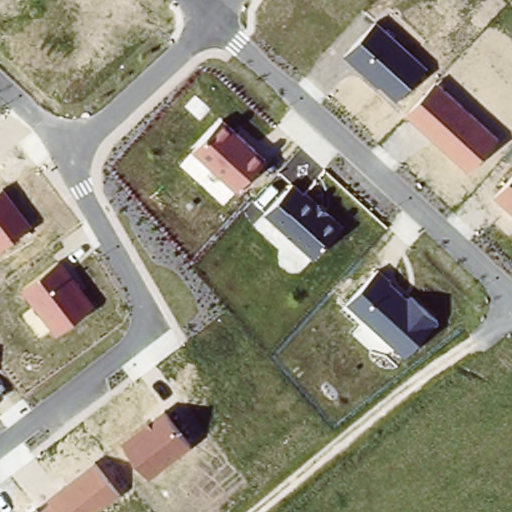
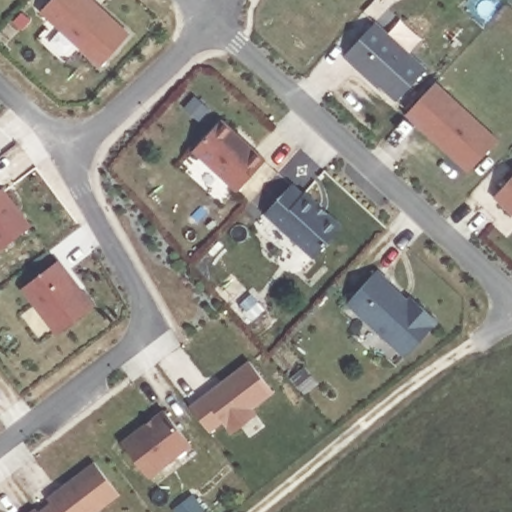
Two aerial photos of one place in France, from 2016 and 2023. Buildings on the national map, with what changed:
new [(93,0),(132,35),(103,67),(43,13),(55,0),(93,0)]
unchanged [(382,85),(379,87),(343,55),(378,19),(429,65),(397,99),(382,85)]
unchanged [(437,81),(497,139),(472,169),(406,114),(437,81)]
unchanged [(265,156),(237,189),(191,150),(218,118),(265,156)]
unchanged [(512,175),(512,214),(492,197),(512,175)]
unchanged [(341,223),(317,254),(263,211),(290,180),(341,223)]
unchanged [(2,187),(30,227),(0,247),(0,188),(2,187)]
unchanged [(20,286),(60,258),(95,306),(55,334),(20,286)]
unchanged [(436,322),(408,354),(346,303),(374,272),(436,322)]
new [(273,393),(252,409),(257,414),(232,434),(223,422),(210,432),(190,406),(250,361),(273,393)]
unchanged [(121,440),(162,409),(188,444),(149,476),(121,440)]
unchanged [(92,460),(120,493),(96,512),(26,512),(92,460)]

